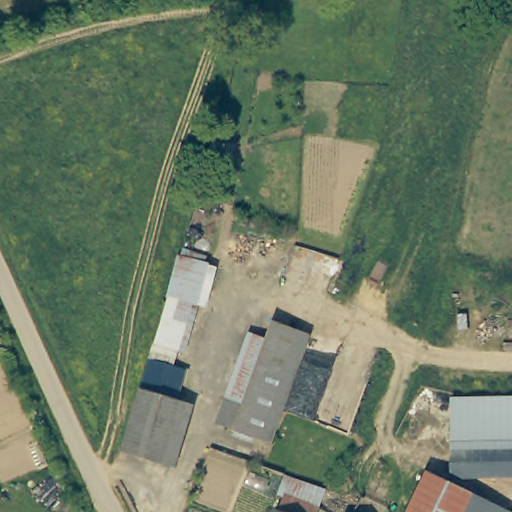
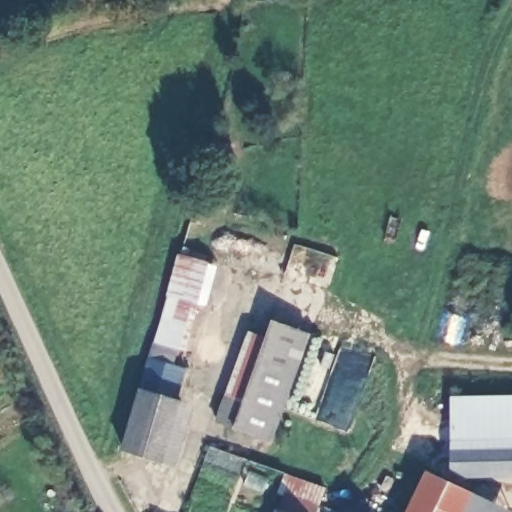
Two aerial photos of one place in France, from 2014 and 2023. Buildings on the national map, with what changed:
unchanged [(174,399),(140,389),(149,358),(153,344),(178,256),(207,264),(183,351),(176,349),(171,364),(185,369),(174,399)]
unchanged [(242,399),(266,333),(272,316),(309,330),(270,436),(215,417),(223,393),(242,399)]
unchanged [(242,399),(223,393),(247,326),(266,333),(242,399)]
unchanged [(192,405),(175,466),(122,450),(140,389),(174,399),(192,405)]
unchanged [(457,397),(512,396),(512,462),(455,463),(457,397)]
unchanged [(512,512),(412,512),(431,472),(512,510),(512,512)]
unchanged [(324,494),(317,512),(277,512),(282,499),(277,496),(282,477),(324,494)]

